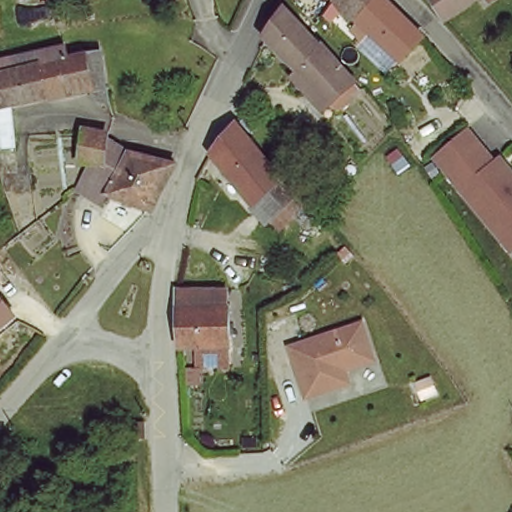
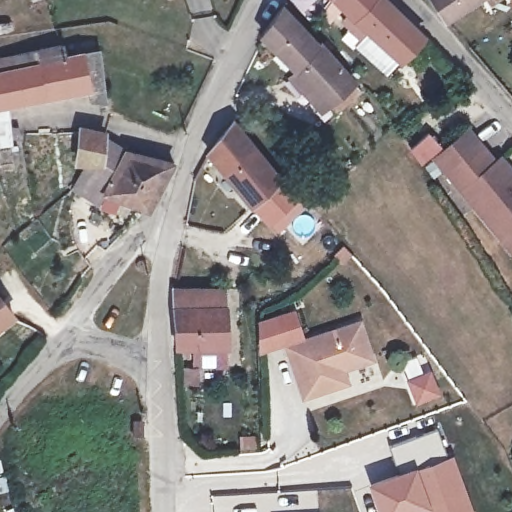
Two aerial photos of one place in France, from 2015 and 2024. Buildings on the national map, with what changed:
unchanged [(353,31),(359,25),(334,2),(334,1),(334,0),(381,0),(400,16),(424,44),(403,64),(396,73),(365,43),(353,31)]
unchanged [(430,0),(487,0),(446,26),(430,0)]
unchanged [(281,21),(285,17),(316,47),(318,45),(366,93),(360,102),(346,91),(329,108),(266,47),(261,41),(281,21)]
unchanged [(211,53),(218,41),(229,41),(221,59),(211,53)]
unchanged [(4,58),(50,47),(53,55),(83,48),(96,100),(85,103),(81,84),(1,104),(8,135),(9,141),(0,143),(0,69),(5,68),(4,58)]
unchanged [(444,170),(433,156),(422,164),(411,147),(431,133),(443,149),(466,129),(478,142),(494,161),(499,156),(512,172),(512,248),(511,248),(502,237),(444,170)]
unchanged [(303,212),(291,225),(274,210),(261,219),(249,208),(246,211),(203,157),(224,132),(271,187),(303,212)]
unchanged [(144,216),(110,200),(98,208),(78,192),(105,170),(81,166),(84,140),(98,141),(111,146),(123,153),(124,154),(169,173),(144,216)]
unchanged [(145,270),(136,265),(141,254),(151,259),(145,270)]
unchanged [(221,288),(224,348),(176,350),(177,291),(221,288)]
unchanged [(0,300),(12,316),(0,326),(0,300)]
new [(268,354),(259,320),(297,310),(307,341),(287,348),(268,354)]
unchanged [(336,387),(304,398),(291,360),(287,348),(307,341),(333,333),(359,324),(371,360),(351,367),(356,380),(336,387)]
new [(431,375),(438,395),(418,402),(411,383),(431,375)]
new [(437,428),(447,455),(398,471),(389,445),(437,428)]
new [(398,471),(447,455),(453,453),(475,512),(421,512),(421,511),(418,512),(378,512),(368,483),(398,471)]

